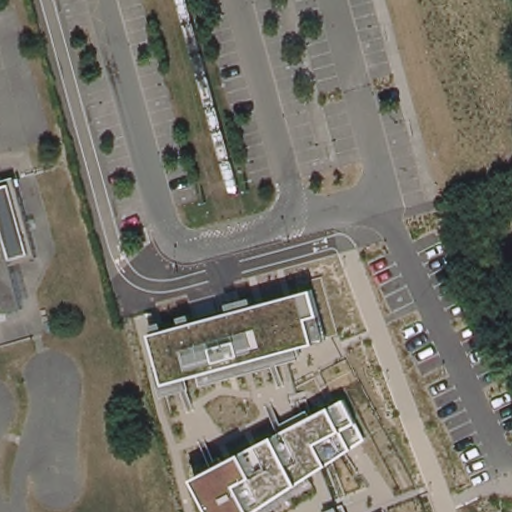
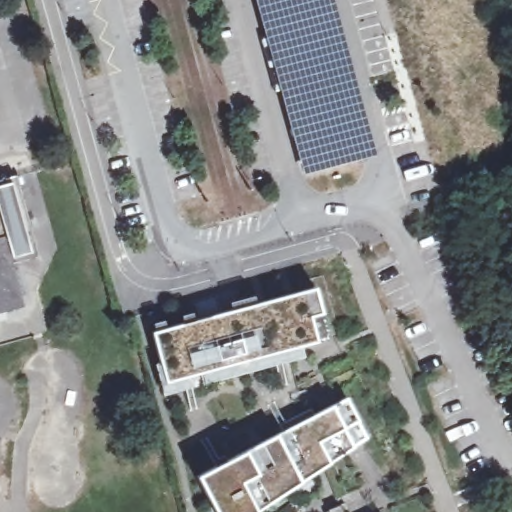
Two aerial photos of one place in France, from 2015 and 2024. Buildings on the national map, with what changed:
new [(377,155),(301,175),(254,0),(334,0),(377,155)]
unchanged [(16,176),(38,256),(12,264),(24,307),(0,314),(0,181),(16,176)]
unchanged [(163,320),(165,327),(182,323),(180,316),(193,313),(195,319),(231,310),(228,303),(251,296),(254,303),(315,289),(328,341),(301,349),(304,358),(204,385),(201,375),(187,379),(190,390),(166,396),(149,322),(163,320)]
unchanged [(366,437),(252,512),(214,512),(195,477),(344,398),(366,437)]

